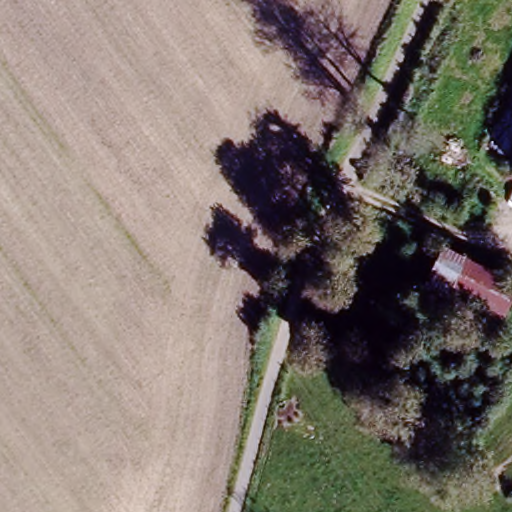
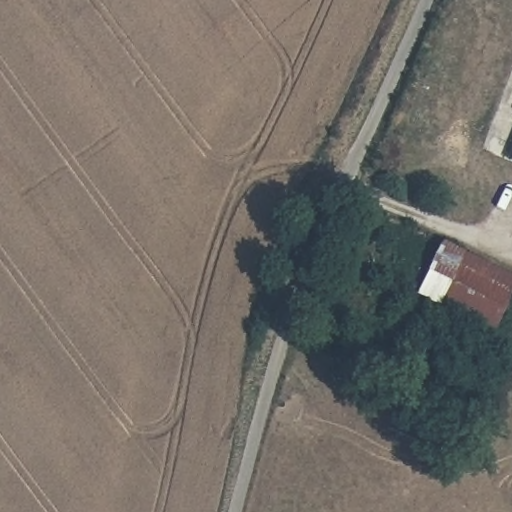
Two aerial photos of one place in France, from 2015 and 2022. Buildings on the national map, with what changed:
unchanged [(512,97),(512,142),(507,152),(490,143),(512,97)]
unchanged [(507,152),(512,142),(512,154),(507,152)]
unchanged [(419,292),(442,240),(512,274),(512,294),(496,329),(419,292)]

